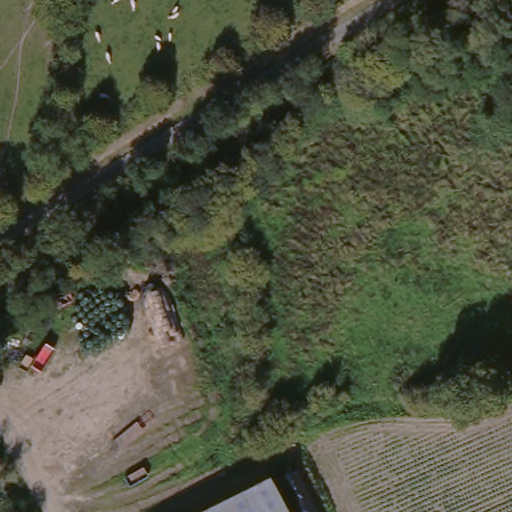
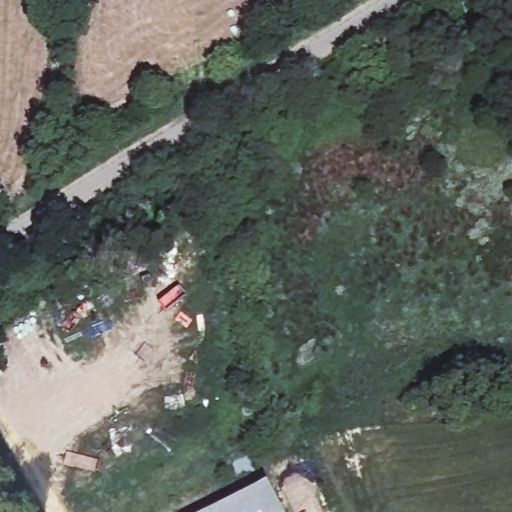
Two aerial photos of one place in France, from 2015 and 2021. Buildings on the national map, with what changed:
unchanged [(282,512),(201,512),(267,482),(282,512)]

